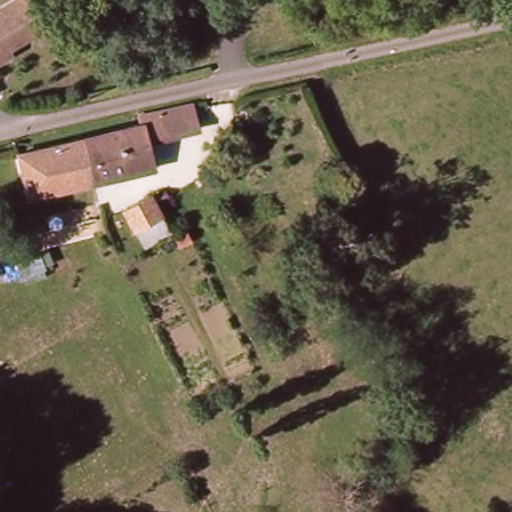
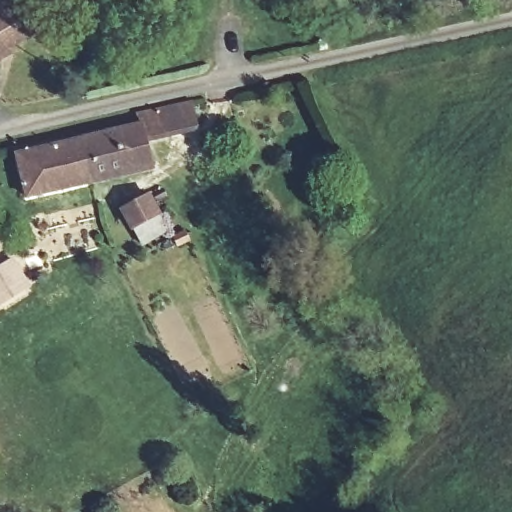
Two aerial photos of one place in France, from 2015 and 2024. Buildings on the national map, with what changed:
unchanged [(26,25),(0,42),(0,0),(12,0),(26,25)]
unchanged [(140,127),(136,111),(190,99),(198,129),(145,141),(151,170),(91,184),(80,140),(140,127)]
unchanged [(80,140),(91,184),(26,198),(15,154),(80,140)]
unchanged [(119,207),(145,192),(165,230),(141,246),(119,207)]
new [(0,265),(16,256),(33,286),(0,306),(0,265)]

